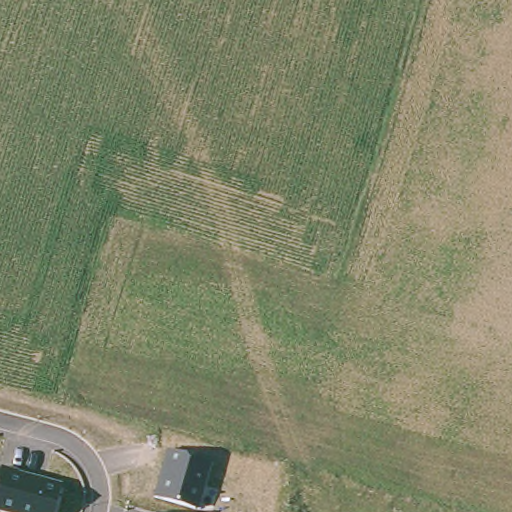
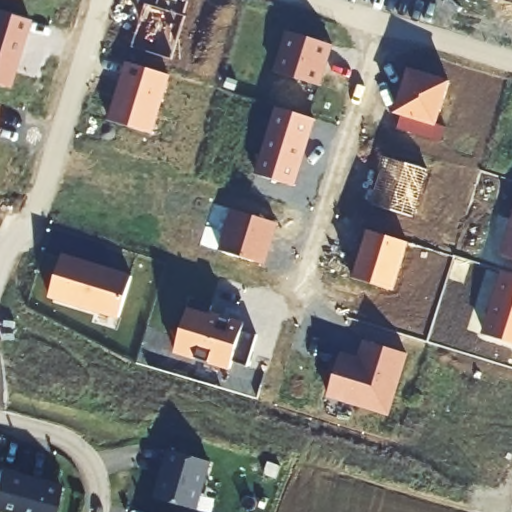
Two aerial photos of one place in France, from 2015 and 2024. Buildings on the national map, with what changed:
new [(145,3),(156,7),(159,0),(184,0),(186,1),(182,15),(185,16),(170,59),(132,46),(145,3)]
new [(0,85),(0,11),(31,20),(10,88),(0,85)]
new [(274,71),(286,31),(333,45),(320,86),(274,71)]
new [(110,120),(126,62),(171,75),(153,134),(110,120)]
new [(402,115),(393,113),(408,67),(451,81),(437,124),(446,127),(440,142),(397,128),(402,115)]
new [(256,173),(275,107),(315,119),(295,186),(256,173)]
new [(370,203),(385,157),(428,170),(412,216),(370,203)]
new [(219,250),(231,209),(279,223),(265,264),(219,250)]
new [(512,218),(512,258),(500,254),(512,218)]
new [(353,278),(367,229),(410,242),(394,291),(353,278)]
new [(48,298),(61,253),(132,274),(118,320),(48,298)]
new [(505,273),(512,276),(512,342),(483,331),(505,273)]
new [(232,360),(229,370),(173,353),(191,297),(212,304),(210,312),(243,322),(241,330),(256,336),(247,365),(232,360)]
new [(326,396),(340,353),(357,359),(363,340),(408,354),(390,416),(326,396)]
unchanged [(210,461),(197,509),(152,496),(166,449),(210,461)]
unchanged [(63,483),(55,512),(0,512),(0,471),(1,467),(63,483)]

